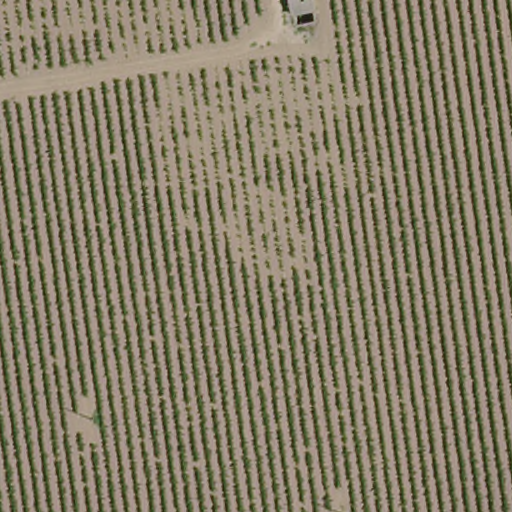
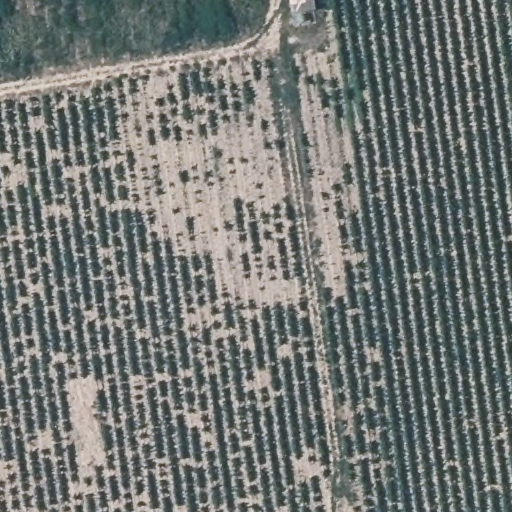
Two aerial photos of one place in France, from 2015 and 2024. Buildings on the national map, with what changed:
unchanged [(292,9),(291,0),(315,0),(316,5),(292,9)]

